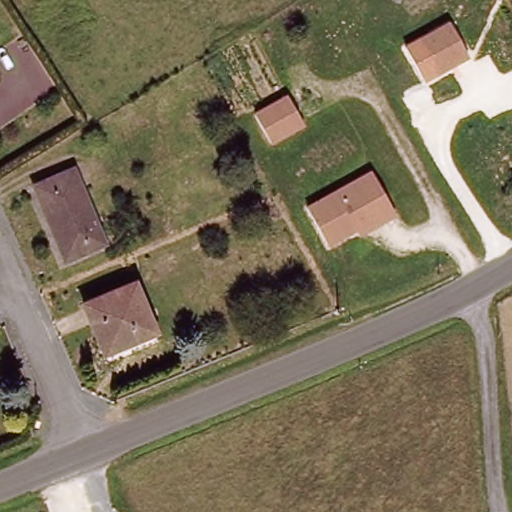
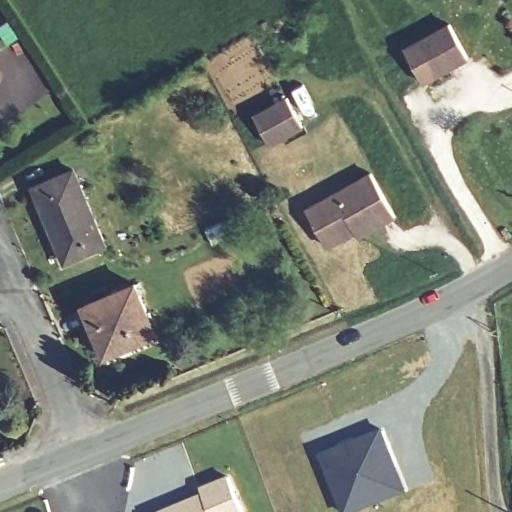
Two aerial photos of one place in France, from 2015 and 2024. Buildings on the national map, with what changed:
unchanged [(435,82),(416,47),(448,30),(466,65),(435,82)]
unchanged [(299,134),(266,152),(250,123),(283,105),(299,134)]
unchanged [(105,242),(64,259),(35,186),(75,169),(105,242)]
unchanged [(350,239),(321,255),(301,217),(366,181),(390,224),(375,234),(354,245),(350,239)]
unchanged [(84,306),(136,286),(156,337),(104,357),(84,306)]
new [(408,490),(357,512),(343,512),(316,453),(383,426),(408,490)]
new [(207,488),(232,478),(245,512),(163,512),(209,494),(207,488)]

